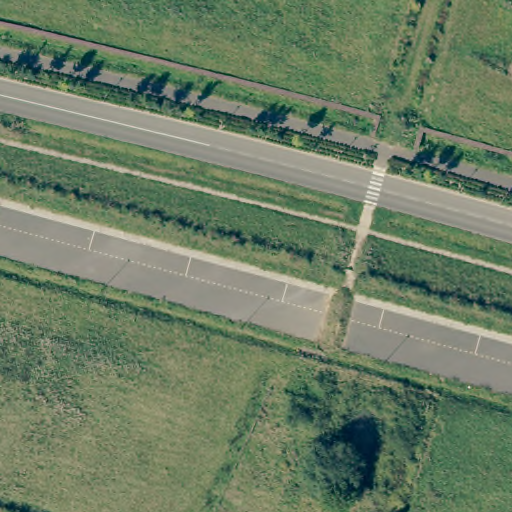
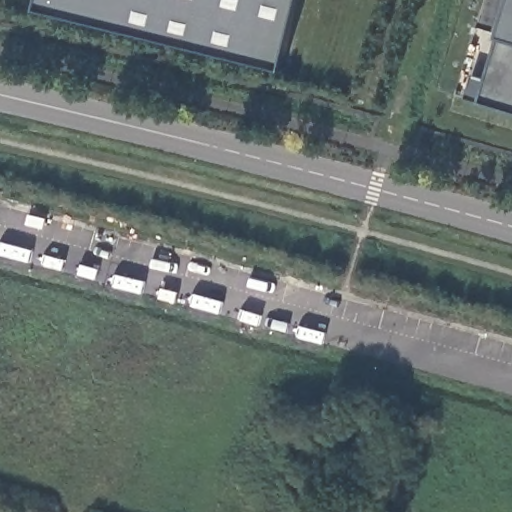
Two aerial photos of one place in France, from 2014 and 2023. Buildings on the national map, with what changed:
new [(41,9),(43,0),(300,0),(283,70),(41,9)]
new [(481,101),(467,99),(474,75),(489,81),(501,38),(512,1),(512,110),(481,101)]

